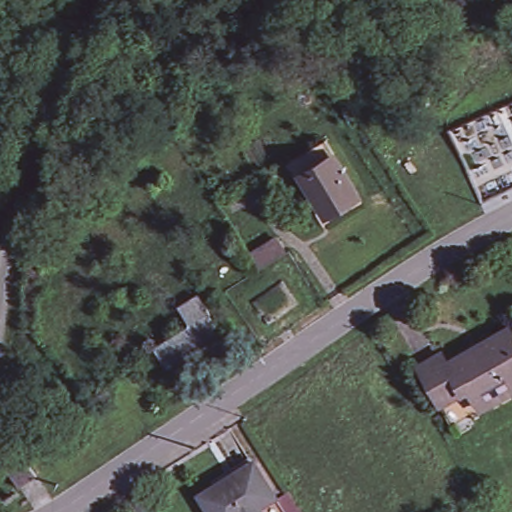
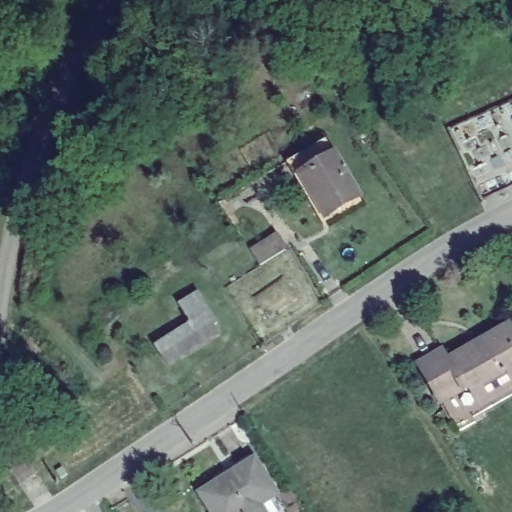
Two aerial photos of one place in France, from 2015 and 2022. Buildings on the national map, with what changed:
unchanged [(325,215),(302,175),(292,159),(326,140),(336,155),(359,195),(325,215)]
unchanged [(186,323),(175,305),(195,293),(213,323),(209,325),(213,332),(200,340),(176,355),(161,364),(150,345),(165,336),(186,323)]
unchanged [(475,412),(471,406),(452,417),(442,399),(435,387),(418,360),(443,346),(449,356),(493,330),(491,328),(509,318),(512,324),(512,392),(475,412)]
unchanged [(17,445),(25,457),(36,472),(20,485),(0,457),(17,445)]
unchanged [(241,510),(239,512),(216,512),(201,488),(255,454),(276,488),(290,510),(287,512),(242,512),(241,510)]

